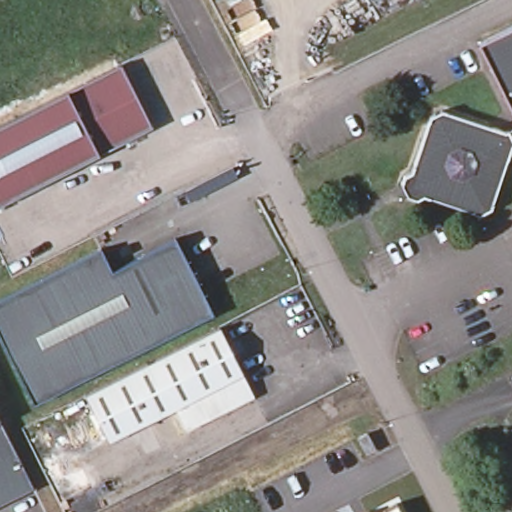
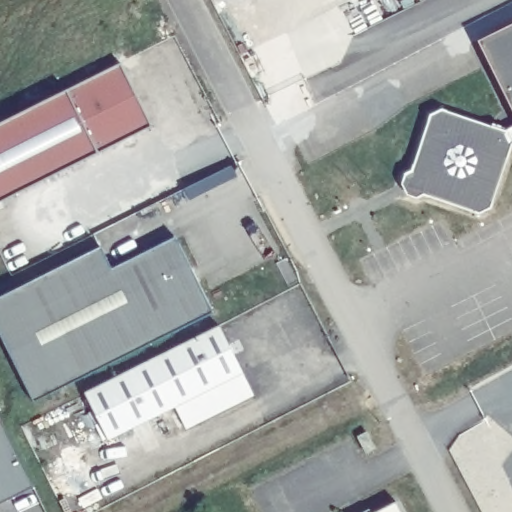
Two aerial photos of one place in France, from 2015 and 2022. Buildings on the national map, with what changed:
unchanged [(512,22),(512,118),(474,41),(512,22)]
unchanged [(117,62),(150,125),(0,202),(0,122),(117,62)]
unchanged [(397,185),(401,174),(407,170),(426,115),(438,109),(502,130),(512,125),(512,140),(510,141),(489,208),(475,214),(420,195),(413,199),(402,195),(397,185)]
unchanged [(33,399),(0,334),(0,294),(101,242),(112,264),(175,231),(215,307),(33,399)]
unchanged [(252,393),(184,426),(173,404),(107,435),(85,391),(217,327),(252,393)]
unchanged [(34,486),(0,501),(0,418),(34,486)]
unchanged [(399,497),(407,512),(371,512),(399,497)]

